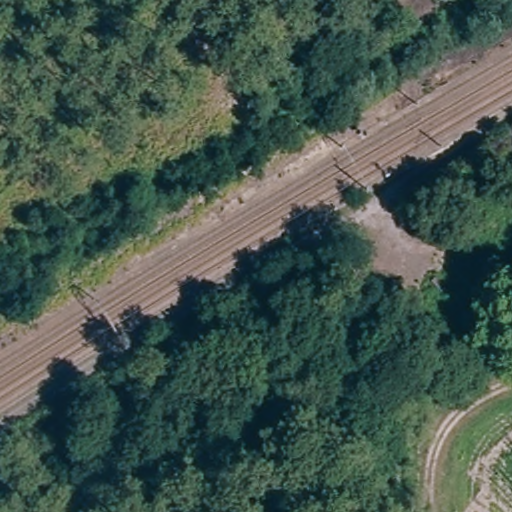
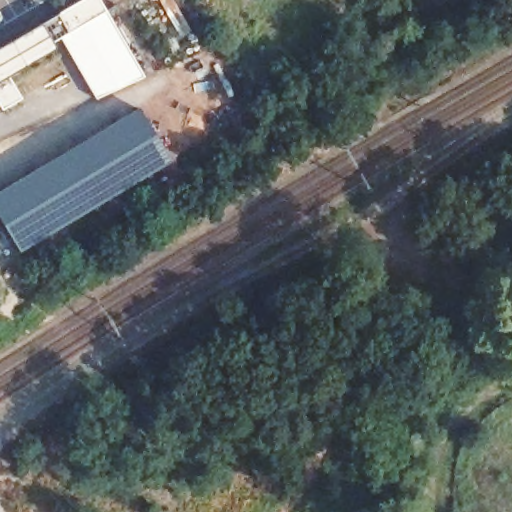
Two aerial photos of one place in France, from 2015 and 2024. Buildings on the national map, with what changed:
new [(57,51),(13,75),(23,100),(4,111),(0,104),(0,48),(61,12),(84,0),(100,0),(146,77),(97,100),(69,49),(57,51)]
new [(19,255),(0,221),(0,191),(139,110),(171,164),(19,255)]

